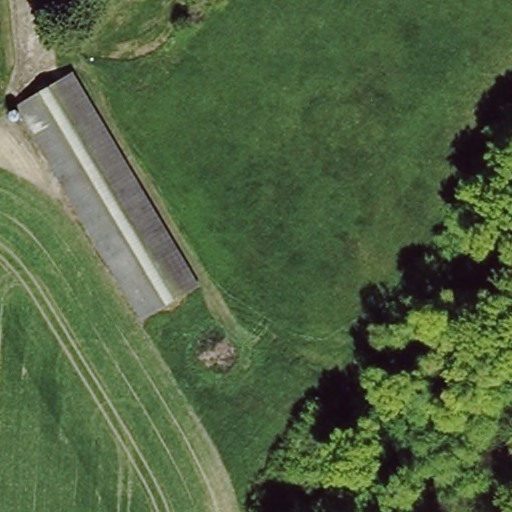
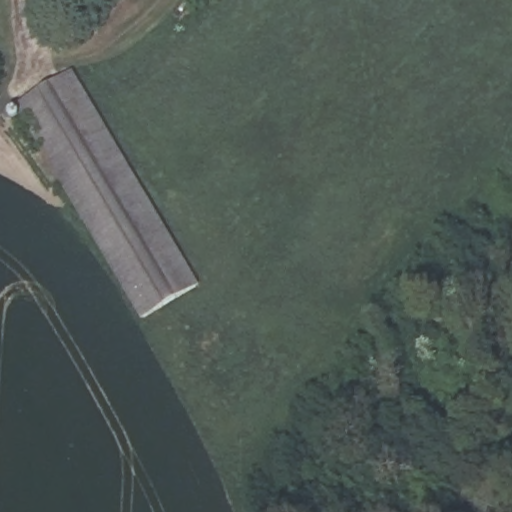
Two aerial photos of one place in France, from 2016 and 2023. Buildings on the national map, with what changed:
unchanged [(97,38),(55,16),(65,0),(121,0),(97,38)]
unchanged [(18,104),(73,71),(202,288),(147,318),(18,104)]

